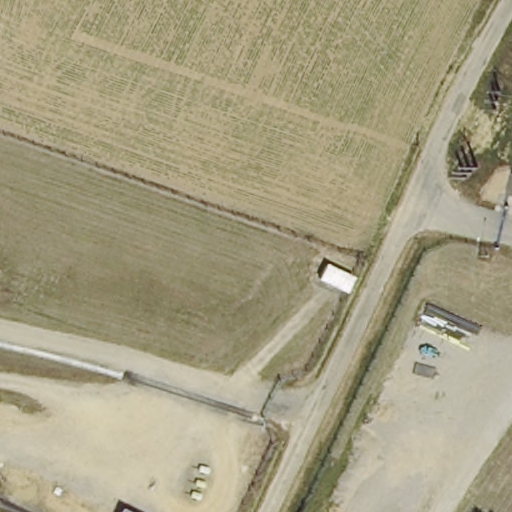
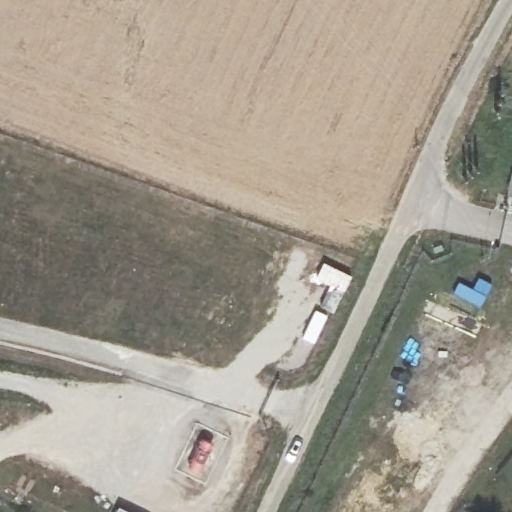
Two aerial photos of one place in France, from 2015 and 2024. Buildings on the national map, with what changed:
unchanged [(353,276),(343,299),(322,290),(333,266),(353,276)]
unchanged [(138,512),(121,512),(123,505),(138,512)]

